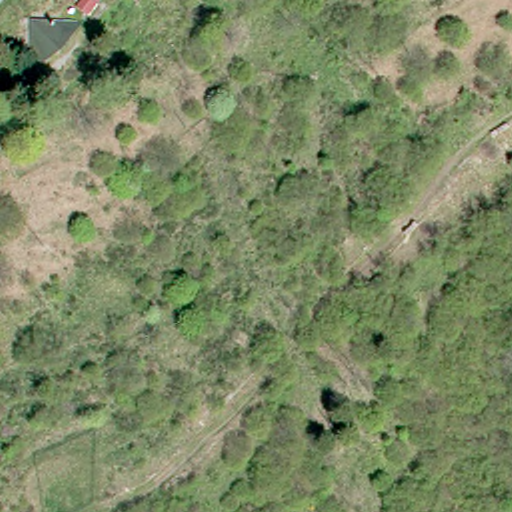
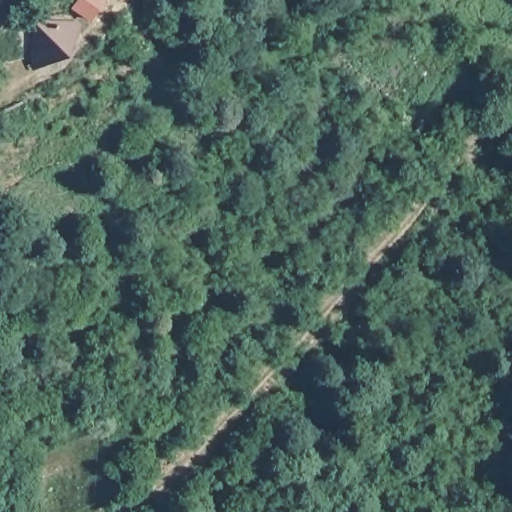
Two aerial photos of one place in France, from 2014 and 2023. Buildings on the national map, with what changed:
unchanged [(83,34),(67,64),(38,74),(38,32),(83,34)]

